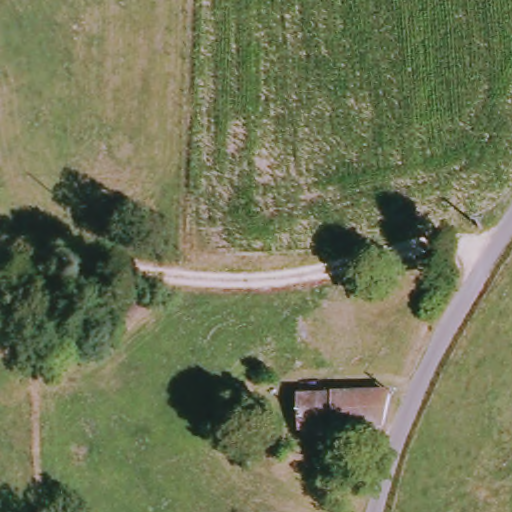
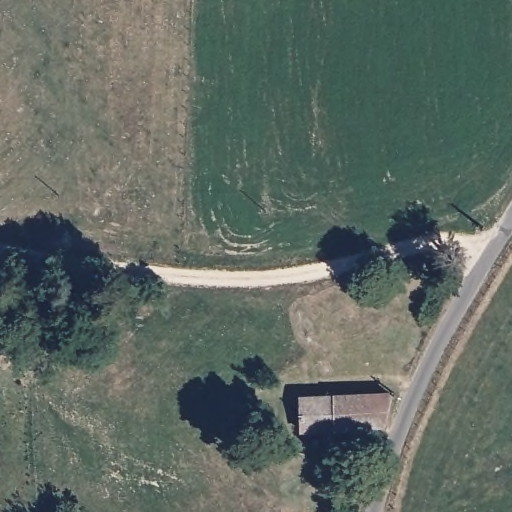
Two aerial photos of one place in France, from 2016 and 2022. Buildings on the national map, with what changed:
unchanged [(390,435),(301,435),(302,401),(353,399),(403,399),(390,435)]

